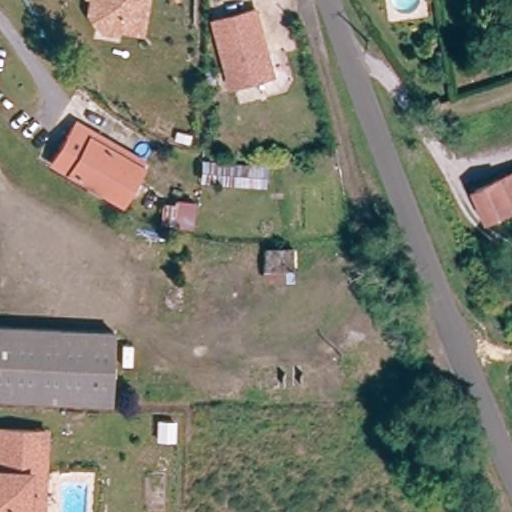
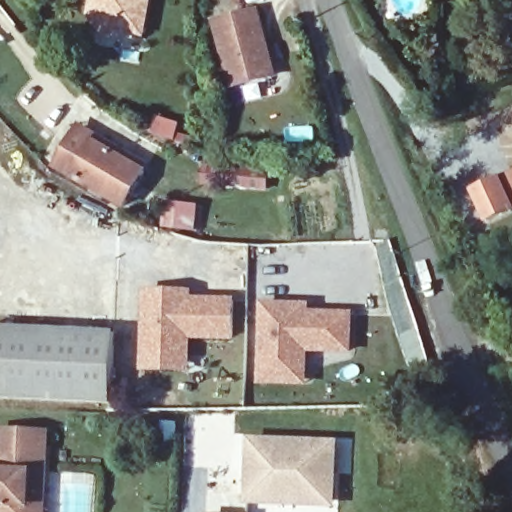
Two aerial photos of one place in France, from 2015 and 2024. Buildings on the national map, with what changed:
unchanged [(116,39),(102,36),(98,31),(87,14),(90,2),(85,1),(85,0),(152,0),(146,39),(117,32),(116,39)]
unchanged [(259,9),(278,77),(230,89),(212,21),(259,9)]
unchanged [(120,206),(53,166),(77,126),(145,165),(120,206)]
unchanged [(268,171),(266,191),(202,184),(205,164),(268,171)]
unchanged [(500,180),(502,186),(508,183),(505,177),(512,174),(512,208),(488,220),(475,192),(500,180)]
unchanged [(196,209),(195,229),(163,228),(164,208),(196,209)]
demolished [(294,269),(267,270),(267,253),(293,252),(294,269)]
new [(192,291),(192,297),(235,298),(235,340),(191,340),(190,372),(141,371),(144,292),(192,291)]
new [(310,303),(310,310),(353,312),(352,354),(309,353),(308,387),(258,386),(260,303),(310,303)]
unchanged [(0,397),(0,330),(111,334),(108,401),(0,397)]
unchanged [(0,429),(49,431),(46,492),(46,512),(0,512),(0,429)]
new [(250,441),(335,445),(332,499),(248,495),(250,441)]

